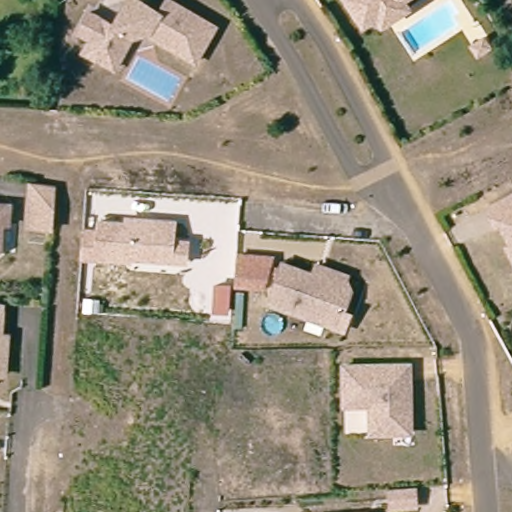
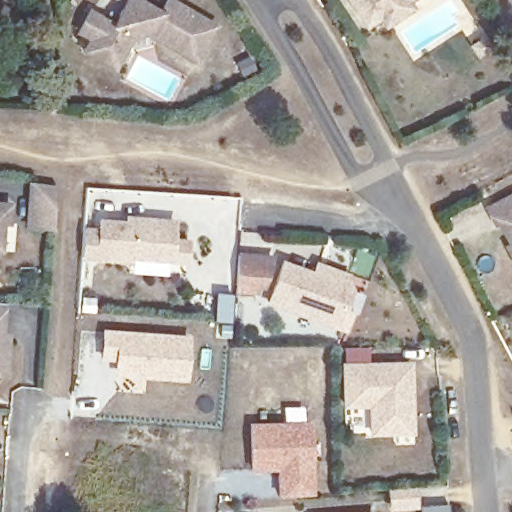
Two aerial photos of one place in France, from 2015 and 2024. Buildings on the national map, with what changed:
unchanged [(94,34),(82,27),(93,8),(118,21),(127,6),(145,0),(147,0),(163,10),(169,0),(180,0),(219,22),(199,57),(154,31),(153,28),(135,33),(125,51),(118,64),(87,47),(94,34)]
unchanged [(381,20),(375,11),(361,20),(349,0),(405,0),(407,3),(381,20)]
unchanged [(481,49),(471,55),(466,47),(476,40),(481,49)]
unchanged [(39,181),(50,183),(47,225),(23,223),(26,179),(39,181)]
unchanged [(495,220),(488,205),(512,192),(512,236),(502,217),(495,220)]
unchanged [(15,205),(13,223),(7,223),(5,251),(0,255),(0,203),(15,205)]
unchanged [(176,235),(189,236),(189,262),(76,258),(77,225),(98,227),(99,215),(175,218),(176,235)]
unchanged [(512,241),(512,252),(507,243),(512,241)]
unchanged [(352,303),(346,319),(271,291),(285,252),(316,264),(318,257),(331,262),(330,262),(349,269),(353,278),(345,300),(352,303)]
new [(229,256),(264,259),(256,287),(227,285),(229,256)]
unchanged [(0,369),(0,298),(7,299),(4,332),(12,333),(9,370),(0,369)]
new [(125,374),(117,367),(119,333),(186,338),(182,376),(125,374)]
unchanged [(411,361),(412,429),(372,430),(372,402),(346,402),(346,362),(411,361)]
new [(279,497),(278,467),(253,468),(252,426),(307,422),(310,495),(279,497)]
unchanged [(405,487),(407,506),(382,508),(380,489),(405,487)]
unchanged [(367,510),(367,512),(338,512),(367,510)]

